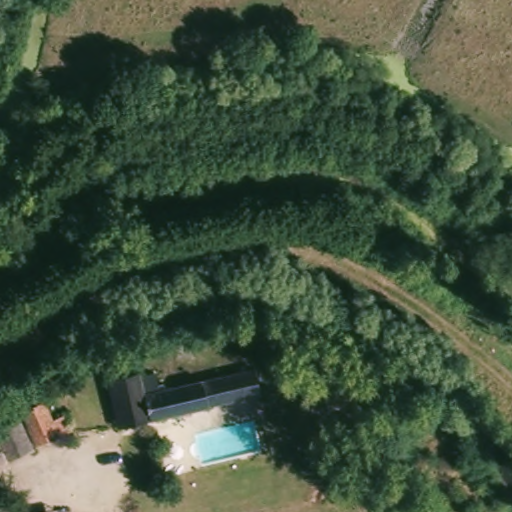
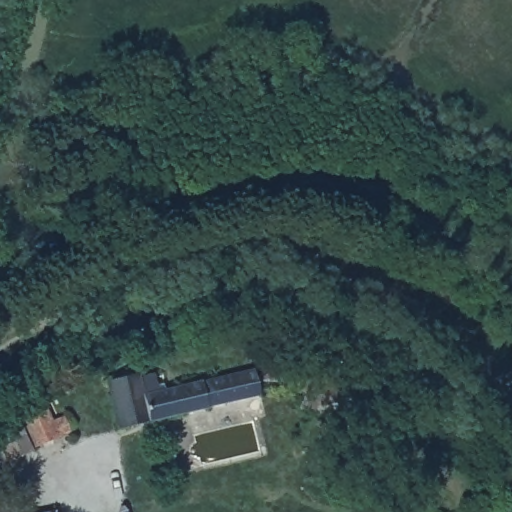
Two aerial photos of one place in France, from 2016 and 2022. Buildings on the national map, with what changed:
unchanged [(286,346),(270,348),(269,337),(284,336),(286,346)]
unchanged [(261,371),(265,392),(227,402),(123,429),(111,379),(141,372),(144,382),(158,380),(161,390),(220,375),(222,381),(261,371)]
unchanged [(5,466),(0,457),(0,427),(46,404),(55,423),(67,418),(74,436),(5,466)]
unchanged [(30,512),(57,507),(58,512),(30,512)]

